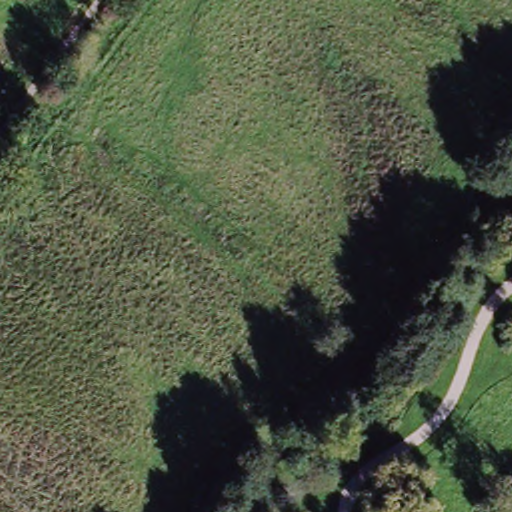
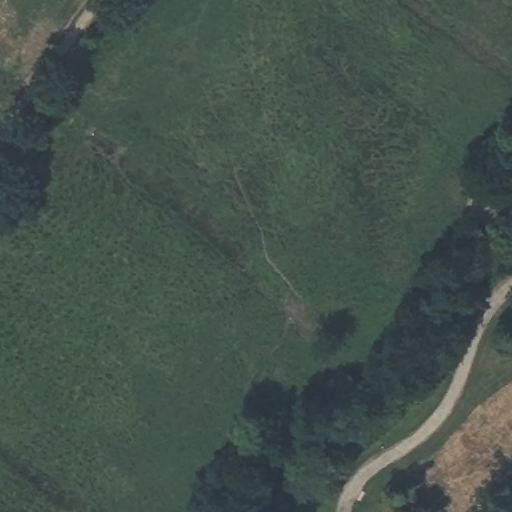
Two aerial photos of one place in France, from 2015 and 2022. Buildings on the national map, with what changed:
[]

